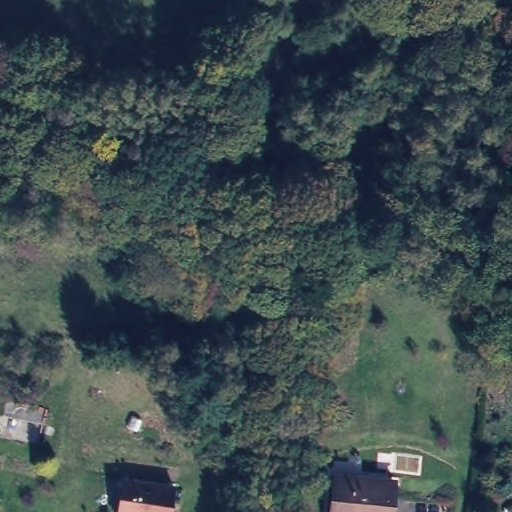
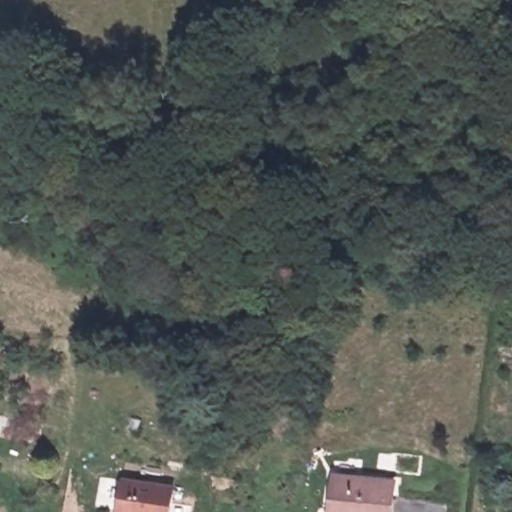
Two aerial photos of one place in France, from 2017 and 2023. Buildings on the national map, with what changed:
unchanged [(327,474),(387,475),(388,512),(327,512),(327,511),(327,474)]
unchanged [(172,488),(169,512),(117,512),(121,483),(172,488)]

